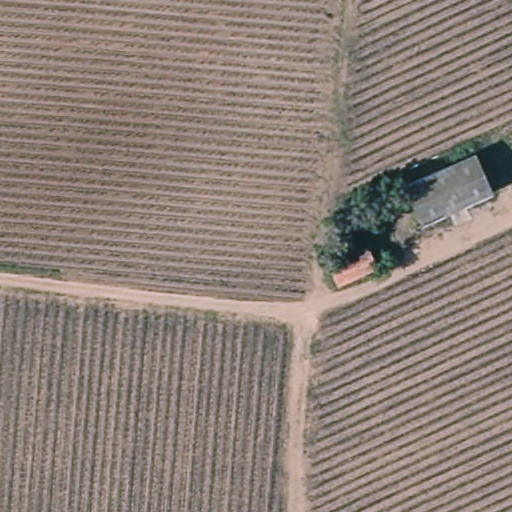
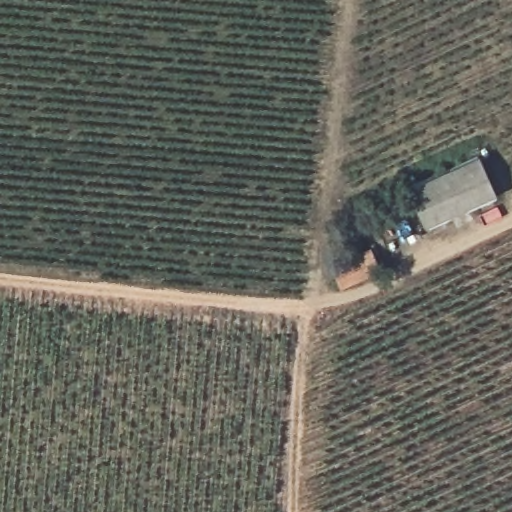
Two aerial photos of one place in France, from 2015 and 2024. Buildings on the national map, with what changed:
unchanged [(491,197),(420,229),(401,190),(472,159),(491,197)]
unchanged [(375,272),(336,289),(327,267),(365,251),(375,272)]

